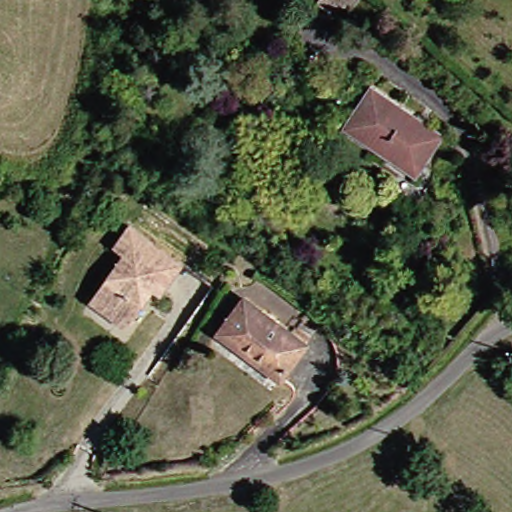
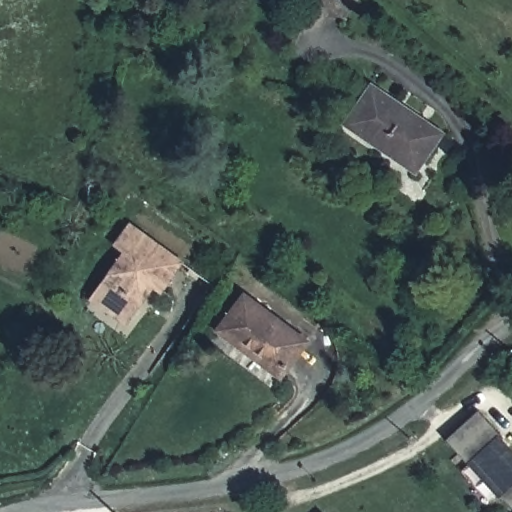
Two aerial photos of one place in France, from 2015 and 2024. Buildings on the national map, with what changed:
unchanged [(345,20),(322,1),(323,0),(362,0),(345,20)]
unchanged [(342,124),(367,84),(435,131),(409,172),(340,127),(342,124)]
unchanged [(174,264),(156,292),(141,282),(128,299),(133,304),(122,324),(88,300),(119,256),(109,250),(123,228),(174,264)]
unchanged [(274,374),(215,329),(242,294),(301,338),(274,374)]
new [(478,411),(500,435),(500,436),(512,449),(512,506),(502,496),(492,505),(451,461),(459,454),(446,440),(478,411)]

